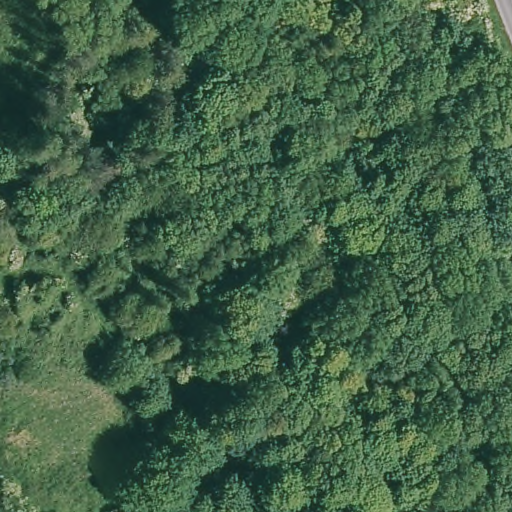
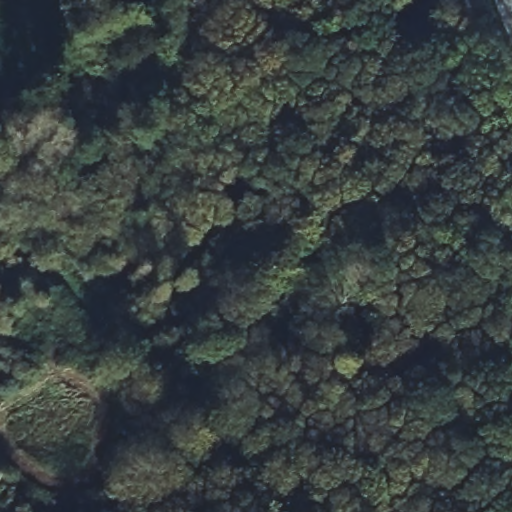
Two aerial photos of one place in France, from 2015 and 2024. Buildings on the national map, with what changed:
[]

